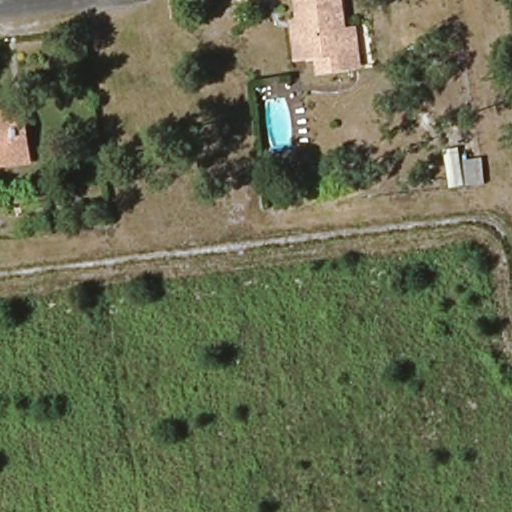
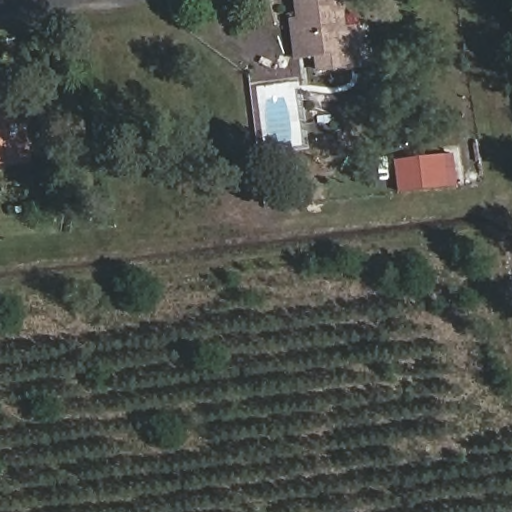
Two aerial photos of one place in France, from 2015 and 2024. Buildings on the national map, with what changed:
unchanged [(349,67),(319,70),(317,55),(305,57),(297,57),(293,19),(300,18),(298,0),(341,0),(345,29),(355,28),(359,66),(349,67)]
unchanged [(25,160),(0,163),(0,115),(9,113),(19,112),(25,160)]
new [(396,160),(434,155),(435,162),(447,161),(446,154),(454,153),(458,184),(400,191),(396,160)]

